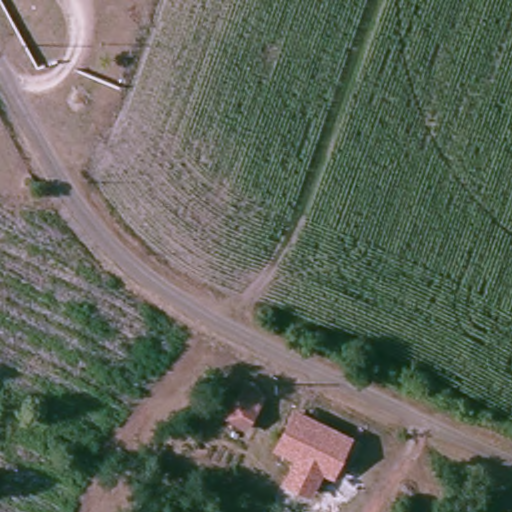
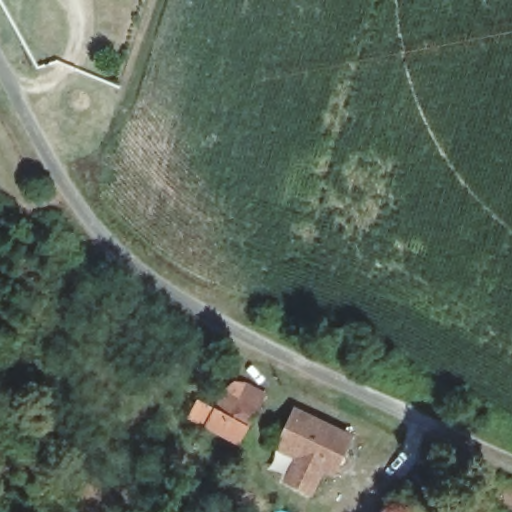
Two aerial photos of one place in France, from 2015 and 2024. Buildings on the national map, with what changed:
unchanged [(237,437),(214,422),(239,380),(262,392),(237,437)]
unchanged [(316,466),(278,448),(294,414),(332,431),(316,466)]

